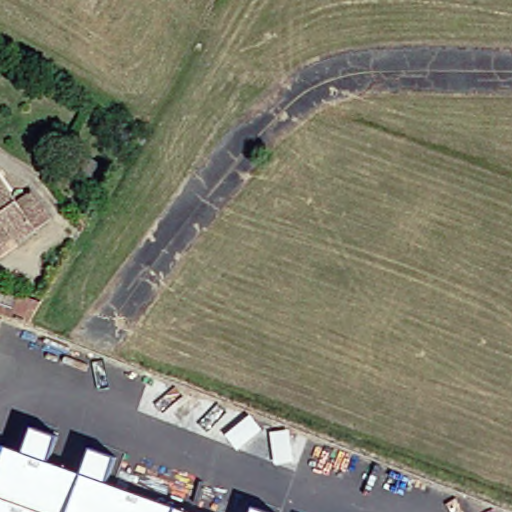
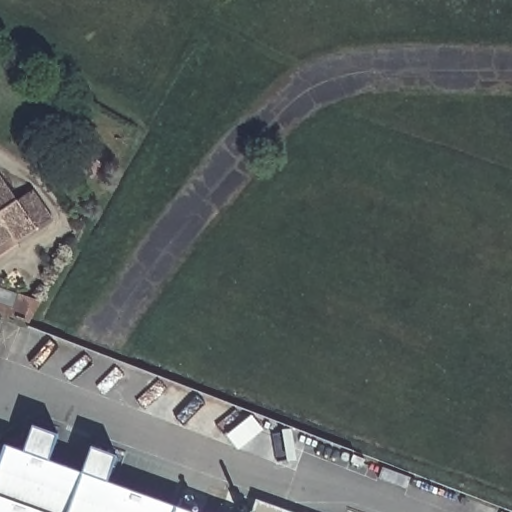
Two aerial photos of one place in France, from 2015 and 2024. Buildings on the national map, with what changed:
unchanged [(8,202),(23,191),(41,217),(0,246),(0,192),(8,202)]
unchanged [(18,294),(39,301),(29,323),(0,312),(0,288),(18,294)]
unchanged [(5,447),(87,476),(185,512),(0,512),(0,463),(5,447)]

